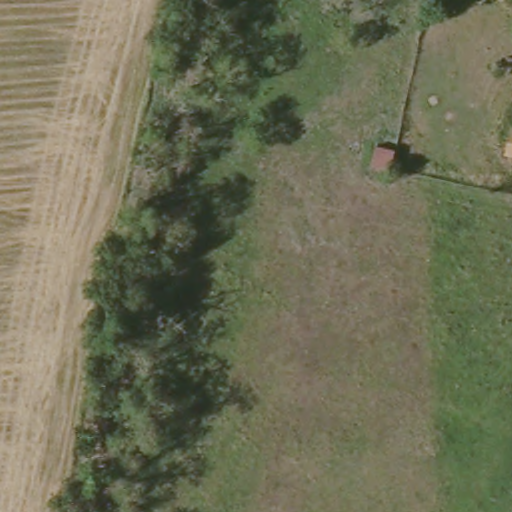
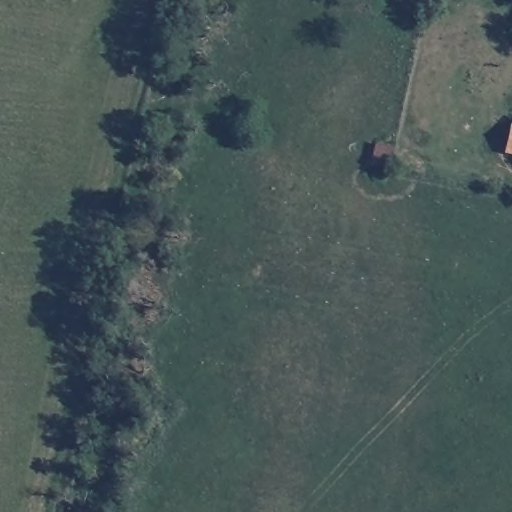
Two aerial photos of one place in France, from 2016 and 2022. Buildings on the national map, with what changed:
unchanged [(512,127),(512,152),(499,148),(504,125),(512,127)]

